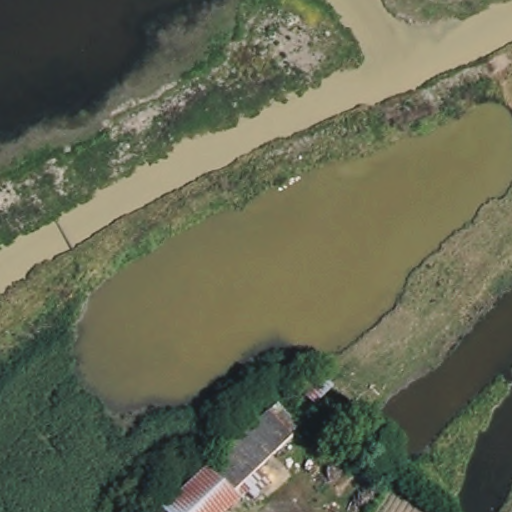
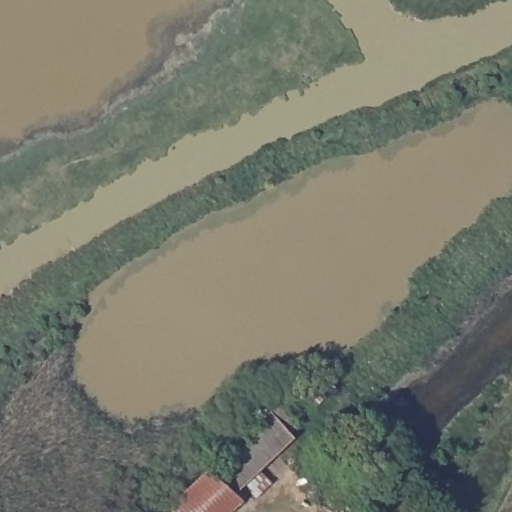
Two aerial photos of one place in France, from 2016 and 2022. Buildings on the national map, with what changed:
unchanged [(296,440),(240,491),(218,468),(274,415),(296,440)]
unchanged [(240,491),(250,502),(238,512),(174,512),(172,510),(218,468),(240,491)]
unchanged [(272,496),(281,506),(273,512),(272,512),(263,503),(272,496)]

